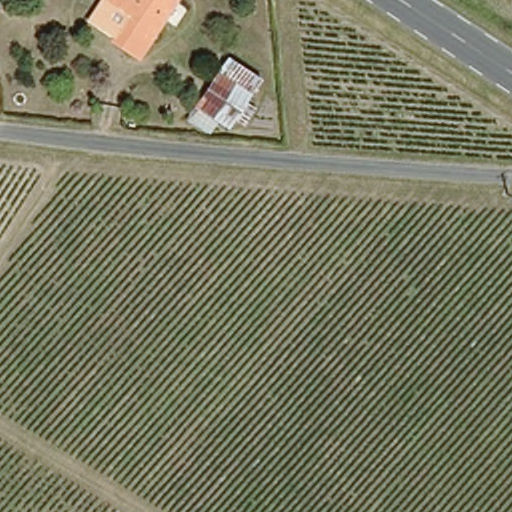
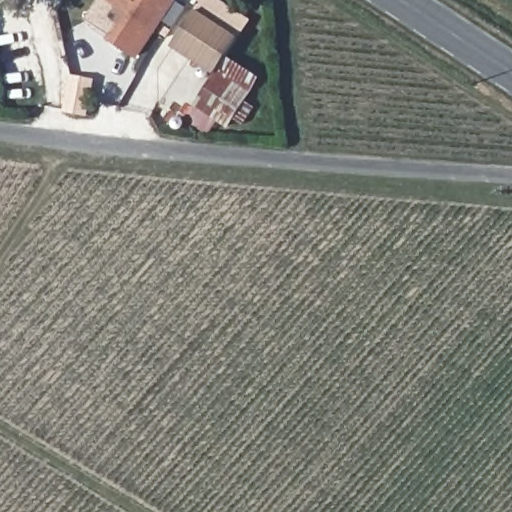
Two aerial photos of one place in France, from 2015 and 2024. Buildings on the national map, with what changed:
unchanged [(133,56),(107,39),(122,17),(97,0),(169,0),(133,56)]
new [(174,48),(199,10),(202,3),(196,0),(222,0),(252,20),(241,37),(228,56),(222,52),(210,71),(174,48)]
unchanged [(245,101),(256,107),(243,127),(232,121),(227,131),(212,122),(204,137),(180,120),(222,52),(261,77),(245,101)]

